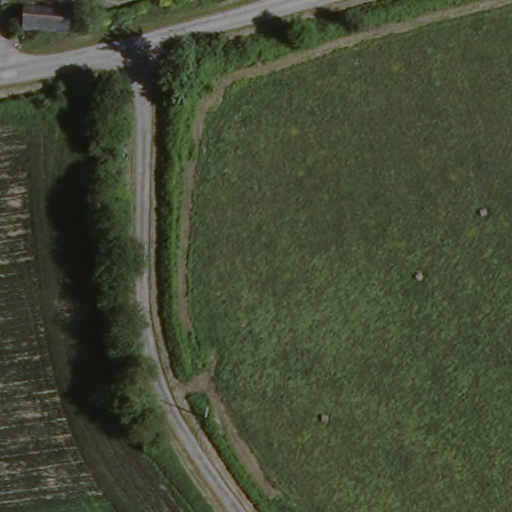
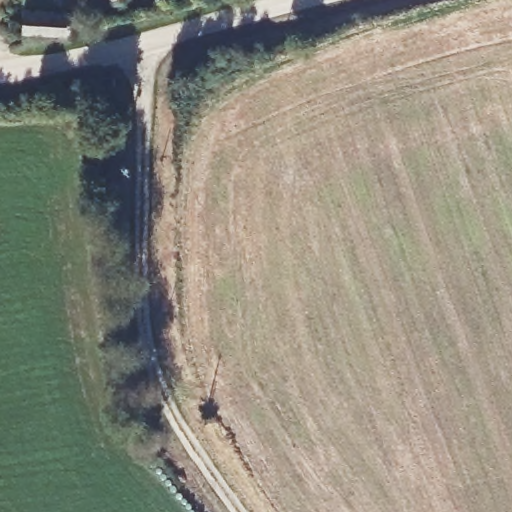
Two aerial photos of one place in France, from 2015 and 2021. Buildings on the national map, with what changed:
unchanged [(108,4),(103,0),(111,0),(108,4)]
unchanged [(21,34),(25,13),(70,16),(68,39),(21,34)]

